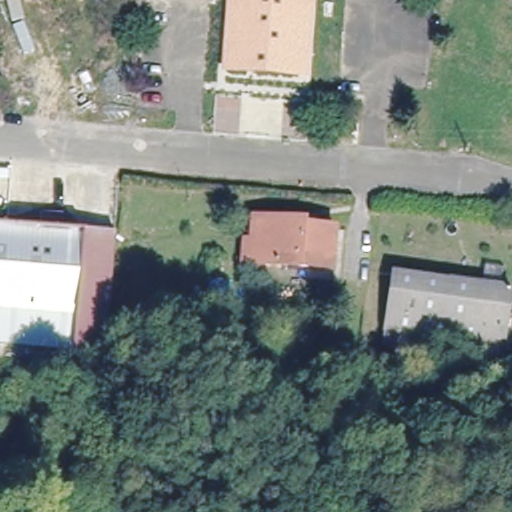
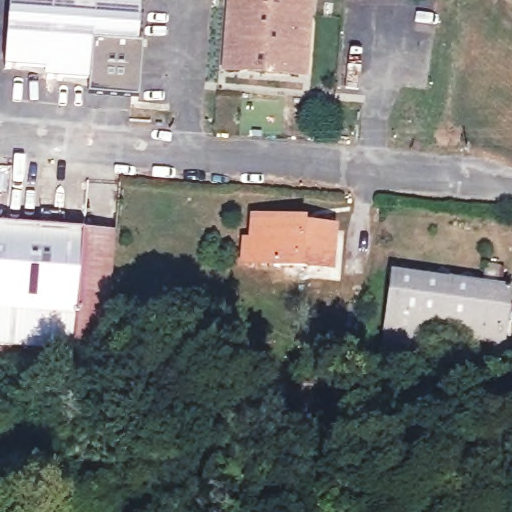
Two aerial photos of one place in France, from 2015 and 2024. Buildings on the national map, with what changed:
new [(123,97),(80,94),(80,86),(37,83),(38,75),(0,72),(0,0),(129,0),(123,97)]
unchanged [(302,73),(226,66),(232,0),(309,0),(302,73)]
unchanged [(329,271),(244,266),(245,244),(252,245),(255,222),(301,226),(300,231),(332,233),(329,271)]
unchanged [(49,231),(88,234),(80,349),(0,344),(0,227),(49,230),(49,231)]
unchanged [(111,351),(80,349),(88,234),(119,236),(111,351)]
unchanged [(510,292),(500,364),(383,348),(393,276),(510,292)]

